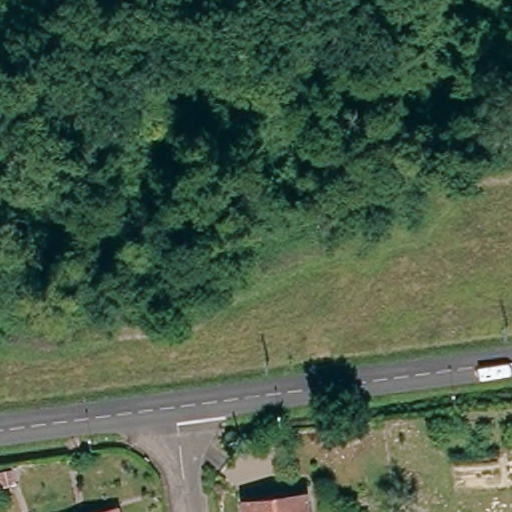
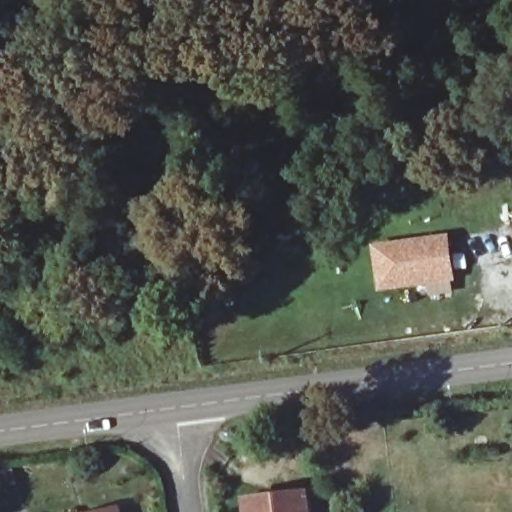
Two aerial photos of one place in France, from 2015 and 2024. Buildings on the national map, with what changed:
new [(456,281),(379,292),(372,244),(449,234),(456,281)]
unchanged [(310,512),(248,512),(247,501),(308,494),(310,512)]

